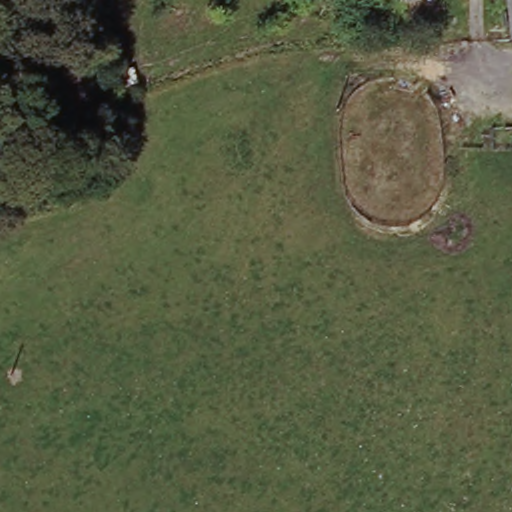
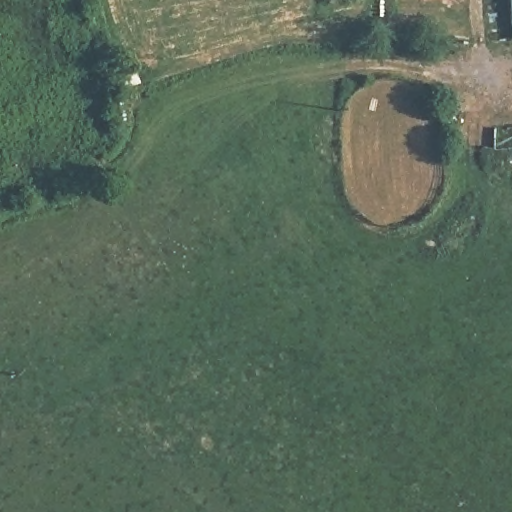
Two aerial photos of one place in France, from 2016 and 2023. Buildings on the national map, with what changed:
unchanged [(508,0),(512,0),(512,39),(510,39),(508,0)]

